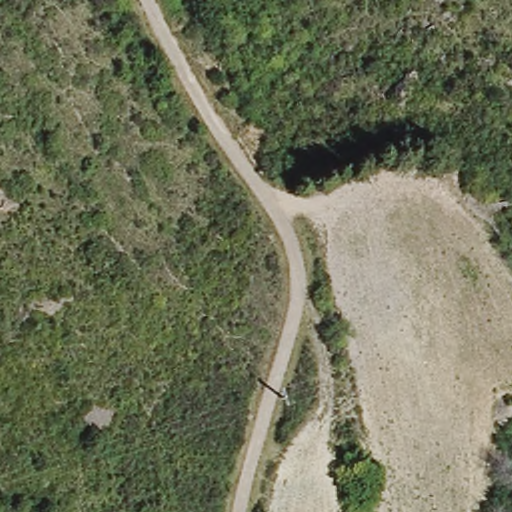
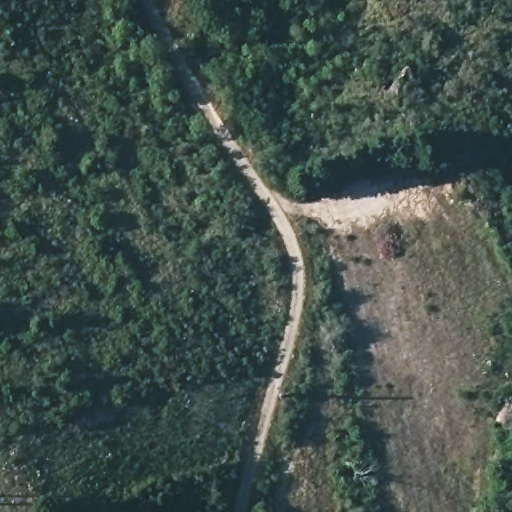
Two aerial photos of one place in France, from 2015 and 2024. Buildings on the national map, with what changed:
unchanged [(512,400),(512,407),(509,401),(512,400)]

